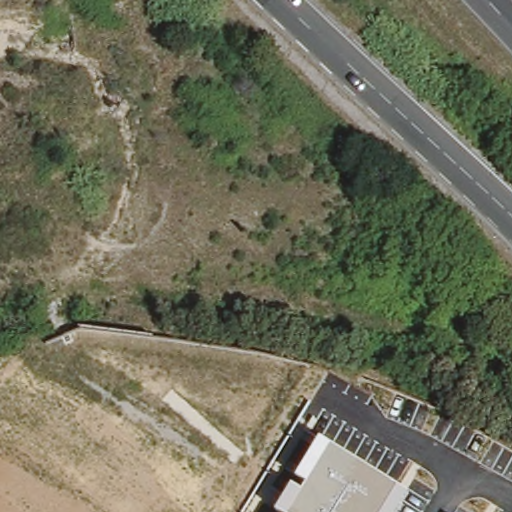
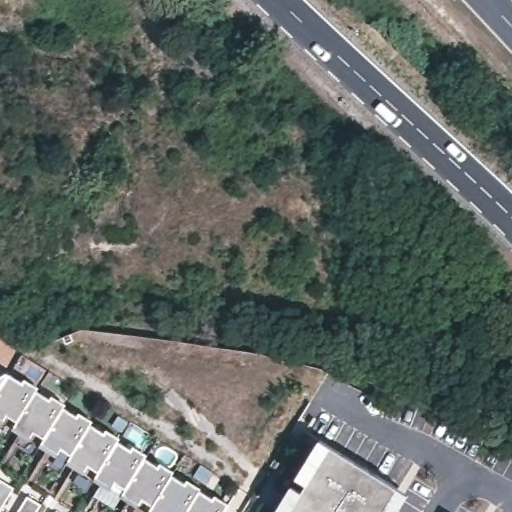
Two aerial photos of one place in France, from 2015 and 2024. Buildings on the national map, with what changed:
new [(9,375),(36,391),(15,424),(5,418),(2,424),(0,423),(0,389),(9,375)]
new [(15,424),(36,391),(63,408),(43,441),(32,435),(29,440),(12,430),(15,424)]
new [(43,441),(63,408),(90,425),(70,458),(60,451),(56,457),(40,447),(43,441)]
new [(70,458),(90,425),(117,442),(97,474),(87,468),(83,474),(67,463),(70,458)]
unchanged [(303,492),(307,486),(297,479),(321,440),(398,489),(408,494),(398,512),(276,512),(292,486),(303,492)]
new [(97,474),(117,442),(144,458),(124,491),(114,485),(110,490),(93,480),(97,474)]
new [(124,491),(144,458),(171,475),(151,507),(151,508),(141,501),(137,507),(120,497),(124,491)]
new [(151,507),(171,475),(198,492),(186,512),(149,512),(151,508),(151,507)]
new [(13,489),(0,511),(0,480),(13,489)]
unchanged [(225,508),(223,512),(186,512),(198,492),(225,508)]
new [(18,512),(27,497),(40,505),(37,512),(18,512)]

